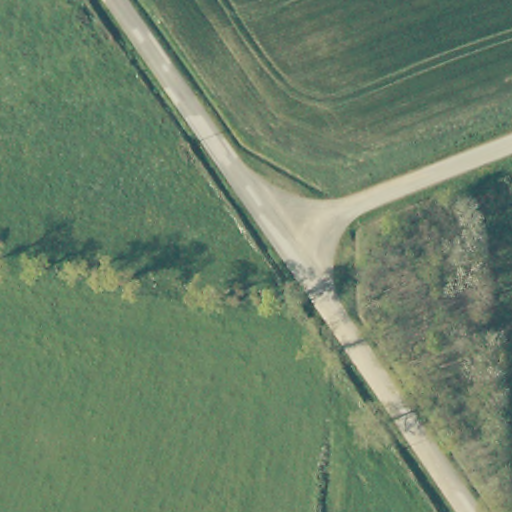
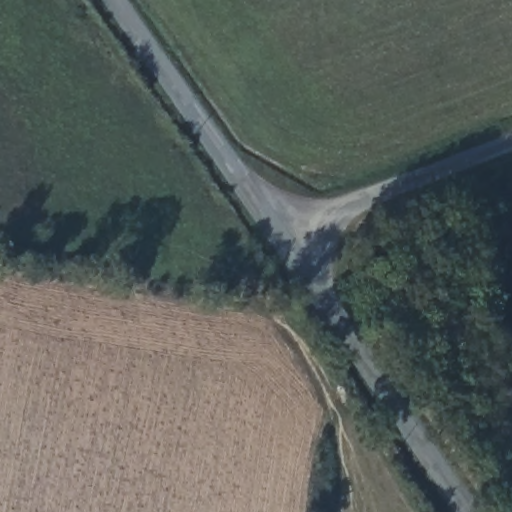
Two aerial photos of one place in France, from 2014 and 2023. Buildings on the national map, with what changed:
[]

